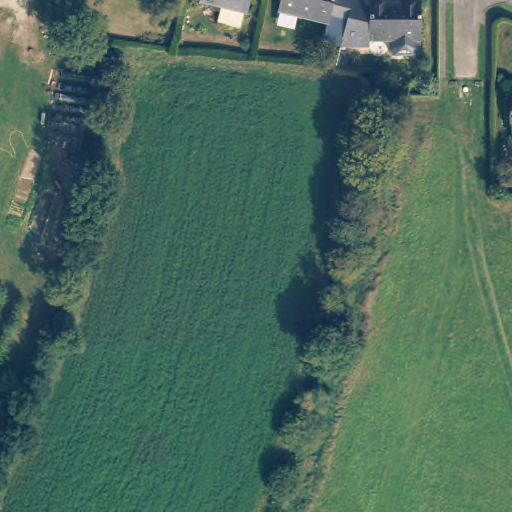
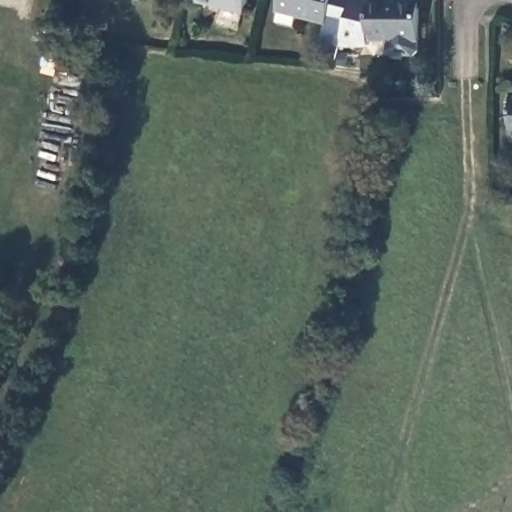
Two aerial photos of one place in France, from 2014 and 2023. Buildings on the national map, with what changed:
unchanged [(199,2),(200,0),(250,0),(246,14),(199,2)]
unchanged [(334,25),(281,11),(284,0),(358,0),(351,27),(335,22),(334,25)]
unchanged [(422,56),(399,56),(394,51),(394,41),(373,42),(373,47),(346,47),(351,27),(358,0),(394,0),(394,2),(426,3),(426,41),(426,51),(422,56)]

